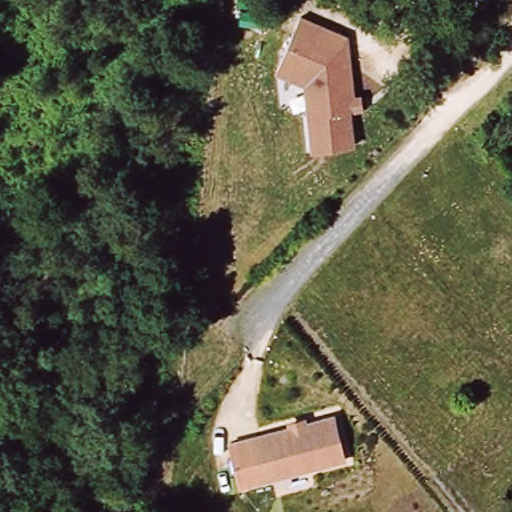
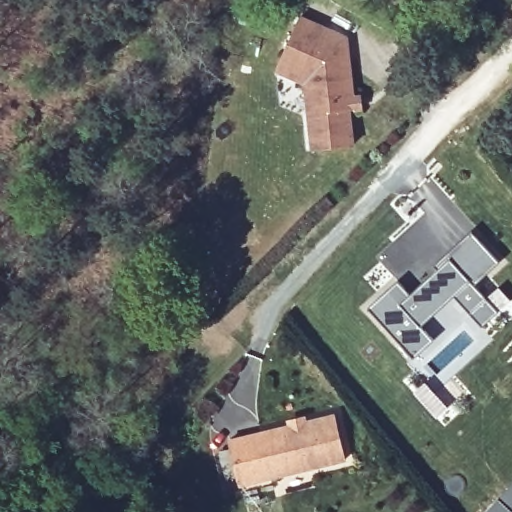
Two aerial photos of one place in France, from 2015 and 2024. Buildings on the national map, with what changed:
unchanged [(351,108),(355,143),(315,148),(307,81),(278,68),(302,15),(348,36),(355,95),(363,94),(365,106),(356,106),(351,108)]
new [(498,262),(473,284),(500,312),(482,327),(455,298),(423,327),(433,339),(412,358),(366,308),(396,280),(409,294),(436,270),(432,266),(471,231),(498,262)]
unchanged [(243,484),(232,439),(337,414),(347,458),(243,484)]
new [(495,500),(508,512),(484,512),(495,500)]

